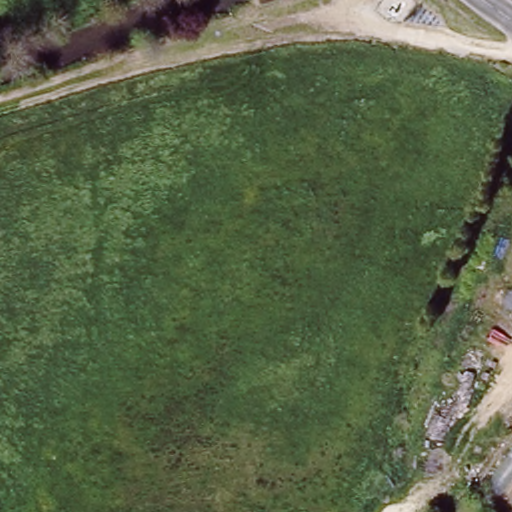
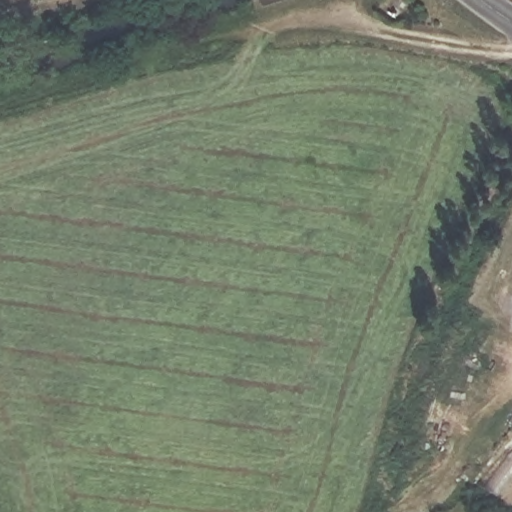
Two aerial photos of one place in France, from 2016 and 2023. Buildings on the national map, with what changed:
[]

